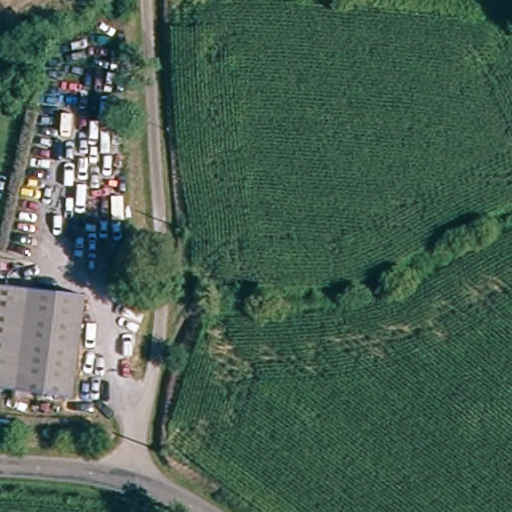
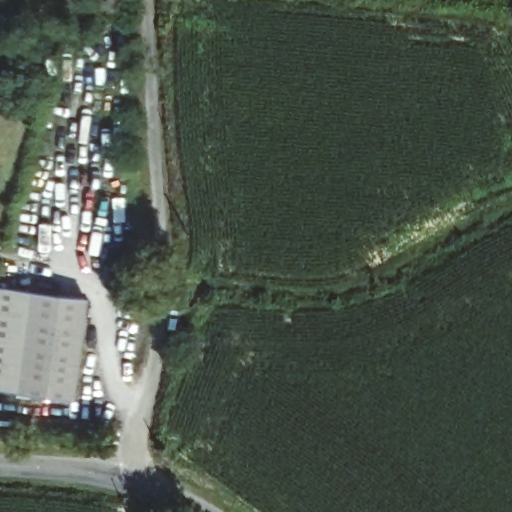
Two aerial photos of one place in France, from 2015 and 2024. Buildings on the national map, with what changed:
unchanged [(71,396),(0,392),(0,284),(75,287),(71,396)]

